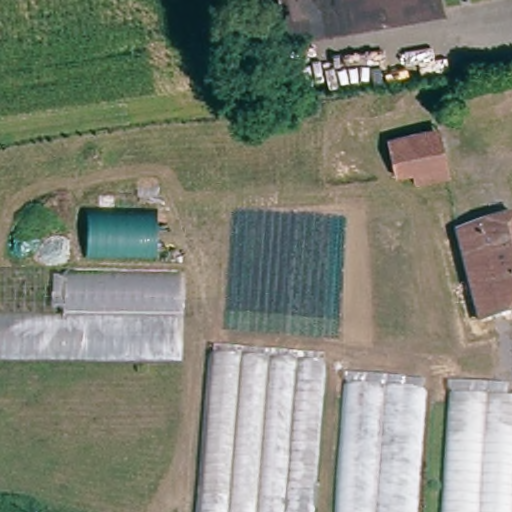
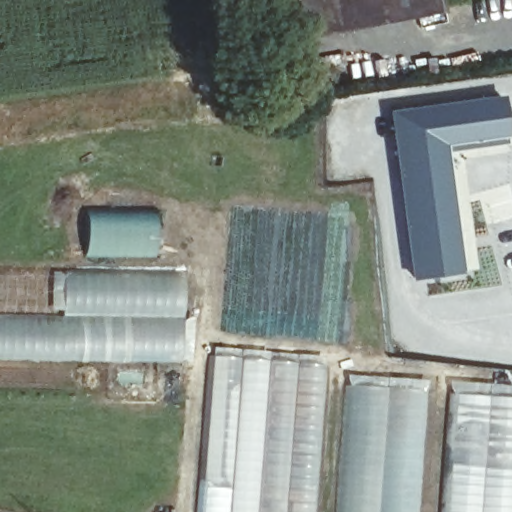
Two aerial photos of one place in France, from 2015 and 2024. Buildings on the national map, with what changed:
unchanged [(286,40),(279,0),(440,0),(442,8),(286,40)]
new [(413,281),(389,112),(504,96),(510,136),(507,136),(508,144),(447,153),(464,273),(413,281)]
demolished [(385,139),(411,134),(416,153),(440,147),(447,179),(413,186),(409,172),(392,175),(385,139)]
new [(159,214),(158,256),(86,256),(87,214),(159,214)]
demolished [(475,321),(455,234),(512,220),(512,311),(496,315),(475,321)]
unchanged [(181,353),(47,350),(0,351),(0,269),(36,269),(184,268),(181,340),(181,353)]
demolished [(512,355),(512,375),(493,373),(496,353),(512,355)]
unchanged [(197,512),(211,361),(292,368),(317,370),(312,435),(308,475),(305,512),(197,512)]
unchanged [(340,369),(431,375),(425,442),(335,432),(340,369)]
unchanged [(452,387),(512,393),(512,512),(441,512),(447,445),(452,387)]
unchanged [(419,512),(328,512),(335,432),(425,442),(419,512)]

